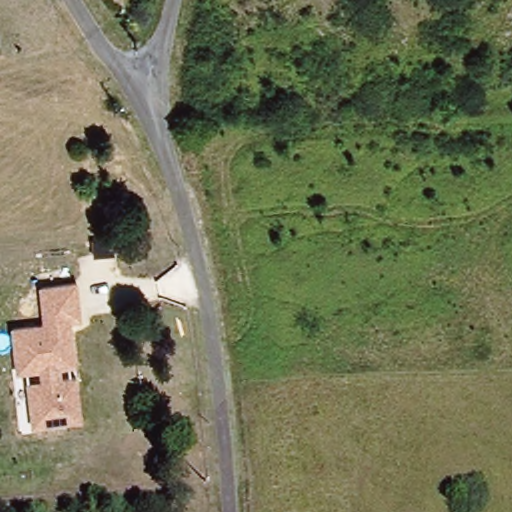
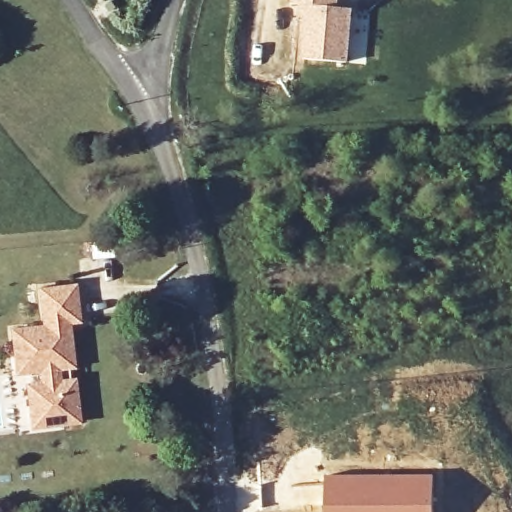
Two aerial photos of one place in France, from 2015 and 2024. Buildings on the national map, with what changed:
new [(293,0),(336,0),(335,8),(369,11),(365,64),(302,59),(307,5),(292,3),(293,0)]
unchanged [(79,281),(84,320),(72,322),(77,365),(60,368),(62,379),(78,376),(85,421),(32,428),(27,382),(40,380),(39,371),(16,374),(11,327),(44,322),(41,288),(79,281)]
new [(435,475),(434,512),(324,512),(325,475),(435,475)]

